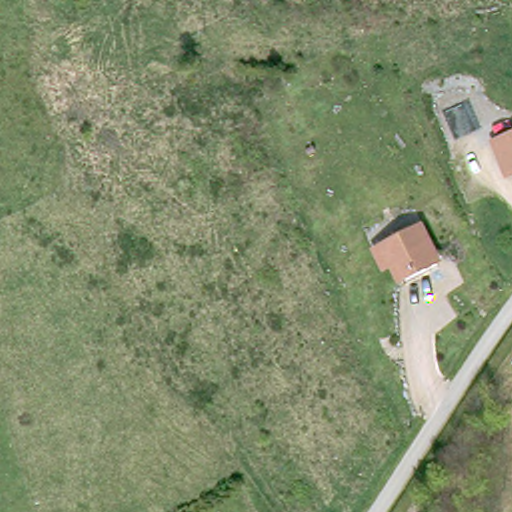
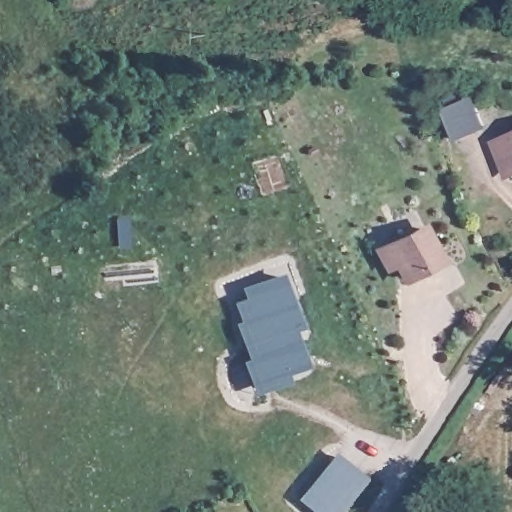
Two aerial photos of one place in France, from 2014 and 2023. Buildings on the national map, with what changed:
new [(486,128),(455,142),(442,109),(474,96),(486,128)]
unchanged [(499,141),(512,136),(512,169),(509,171),(504,156),(499,141)]
unchanged [(396,252),(386,257),(380,242),(424,222),(439,256),(404,272),(396,252)]
new [(240,357),(245,356),(235,323),(239,322),(234,303),(245,300),(241,288),(284,274),(303,330),(295,332),(307,368),(287,376),(289,385),(251,396),(240,357)]
new [(312,512),(297,501),(337,452),(367,477),(338,512),(312,512)]

